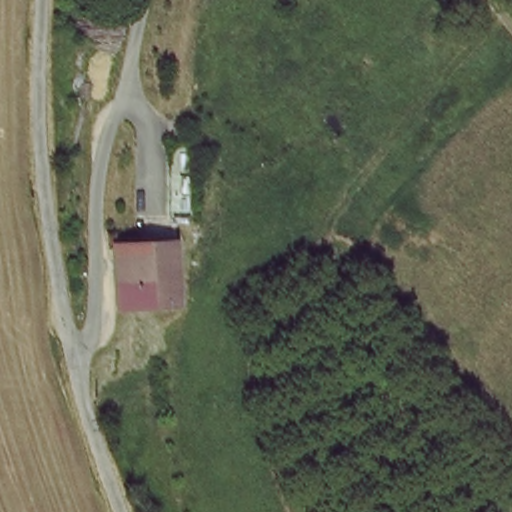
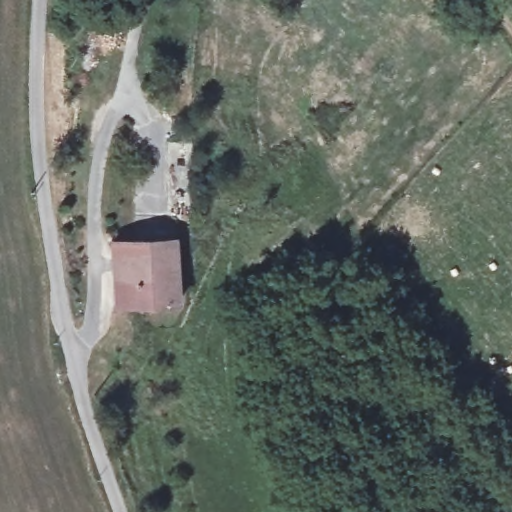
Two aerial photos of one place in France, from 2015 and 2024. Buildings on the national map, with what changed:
unchanged [(176,228),(177,247),(181,313),(167,314),(165,252),(163,229),(176,228)]
unchanged [(120,317),(120,316),(116,233),(123,232),(163,229),(165,252),(167,314),(120,317)]

